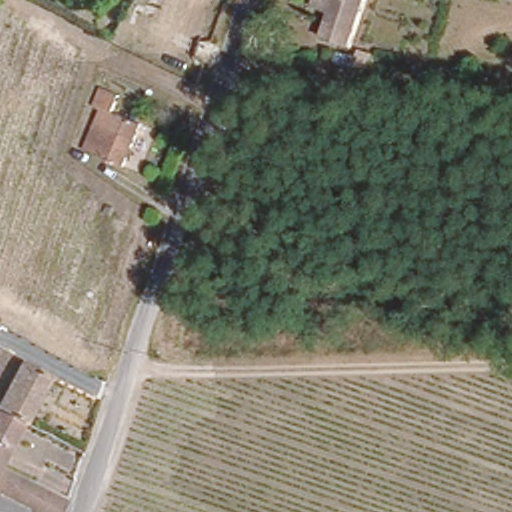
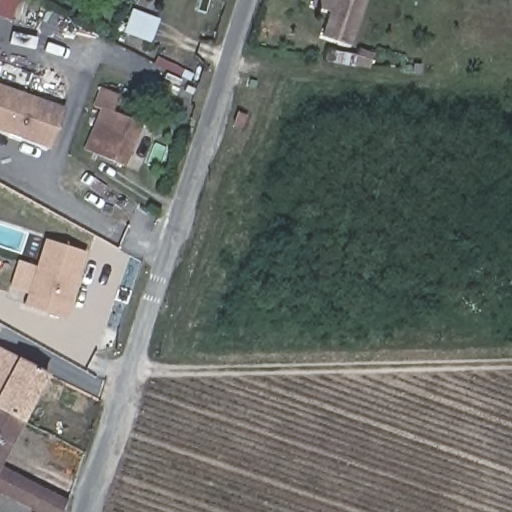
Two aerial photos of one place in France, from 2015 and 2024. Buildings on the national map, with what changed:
unchanged [(346,41),(320,33),(328,7),(311,1),(311,0),(360,0),(346,41)]
unchanged [(375,48),(372,65),(358,63),(361,45),(375,48)]
new [(0,131),(0,84),(65,107),(50,150),(0,131)]
unchanged [(119,90),(111,107),(141,120),(122,163),(75,143),(100,84),(119,90)]
new [(65,320),(22,307),(44,240),(86,252),(65,320)]
unchanged [(0,405),(0,345),(47,371),(23,418),(18,415),(0,405)]
unchanged [(0,405),(18,415),(23,418),(0,461),(0,405)]
unchanged [(64,512),(7,512),(0,509),(0,466),(69,500),(64,512)]

